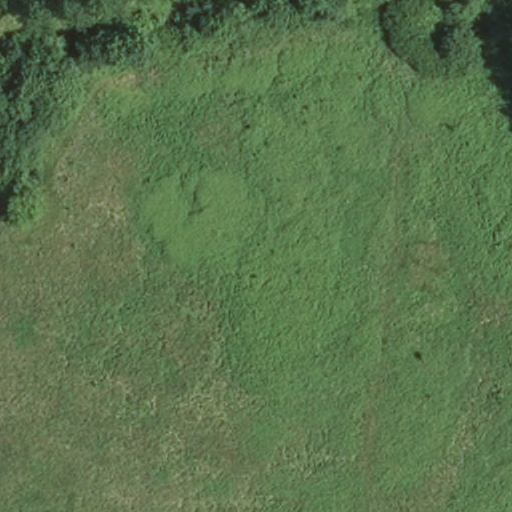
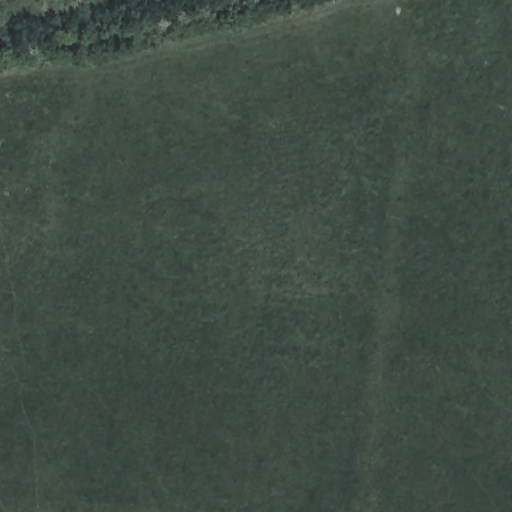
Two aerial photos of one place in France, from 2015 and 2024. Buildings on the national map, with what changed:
[]

